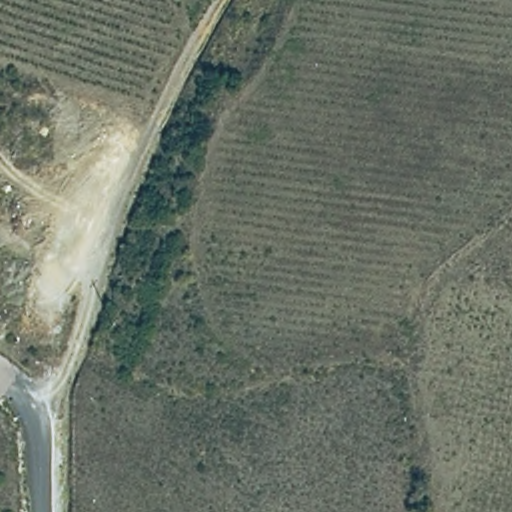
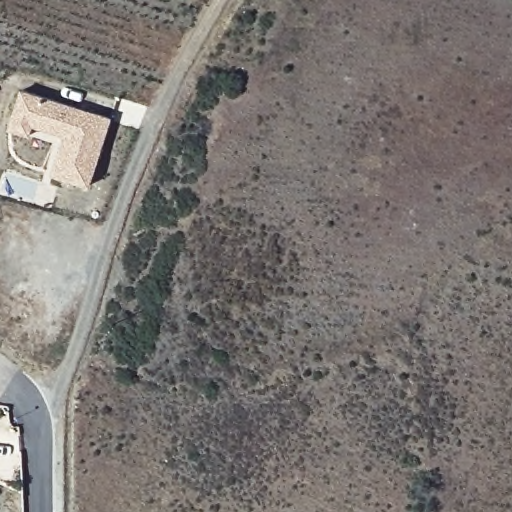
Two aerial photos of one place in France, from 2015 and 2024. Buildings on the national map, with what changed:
new [(90,186),(53,174),(66,135),(34,125),(31,135),(11,128),(23,91),(111,119),(90,186)]

